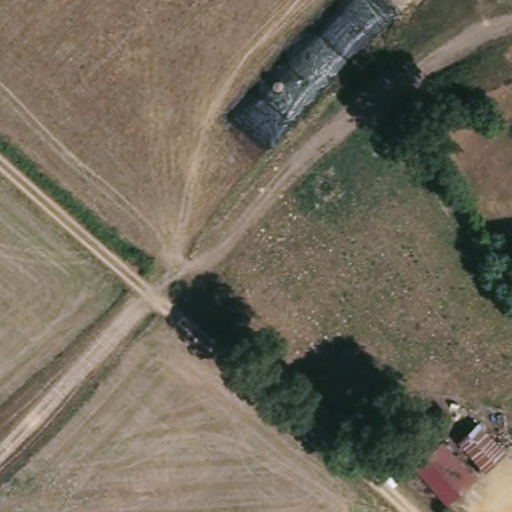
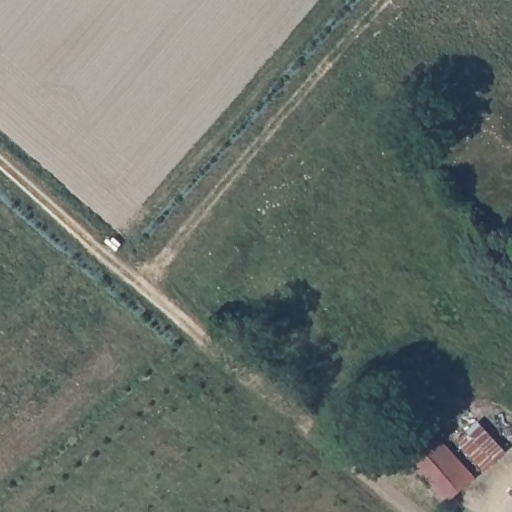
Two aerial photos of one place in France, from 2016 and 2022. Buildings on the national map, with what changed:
unchanged [(473,422),(504,449),(483,470),(452,443),(473,422)]
unchanged [(422,433),(470,481),(450,503),(399,458),(422,433)]

